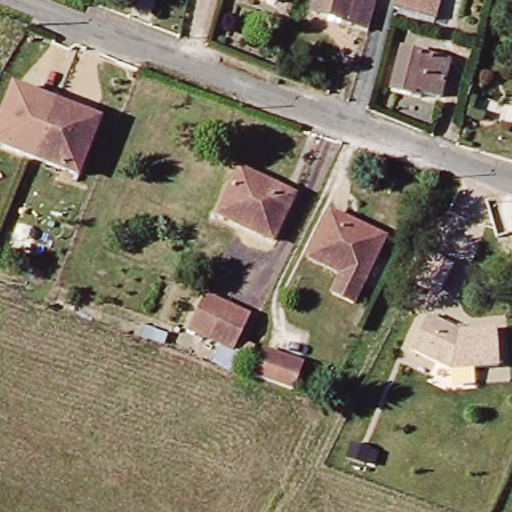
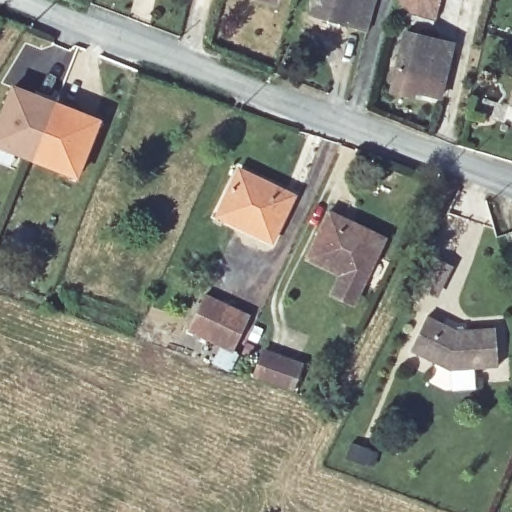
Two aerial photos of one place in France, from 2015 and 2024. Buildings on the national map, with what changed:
unchanged [(269,0),(268,4),(254,0),(269,0)]
unchanged [(304,14),(307,0),(368,0),(361,28),(304,14)]
unchanged [(393,5),(394,0),(435,0),(431,14),(393,5)]
unchanged [(399,50),(444,59),(437,94),(415,90),(412,96),(390,91),(399,50)]
unchanged [(0,137),(0,115),(8,92),(51,108),(35,151),(0,137)]
unchanged [(35,151),(51,108),(96,124),(80,166),(35,151)]
unchanged [(268,236),(215,211),(236,168),(289,194),(268,236)]
unchanged [(338,271),(304,256),(325,210),(379,236),(349,301),(329,291),(338,271)]
unchanged [(187,333),(201,302),(250,324),(236,355),(187,333)]
unchanged [(449,371),(411,351),(428,316),(458,332),(496,329),(499,367),(449,371)]
unchanged [(248,368),(254,352),(291,364),(285,381),(248,368)]

